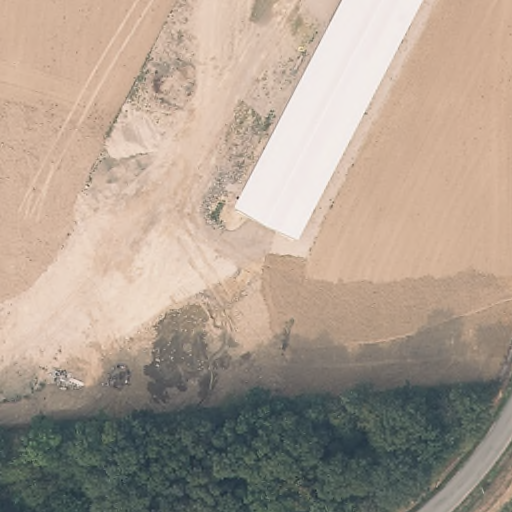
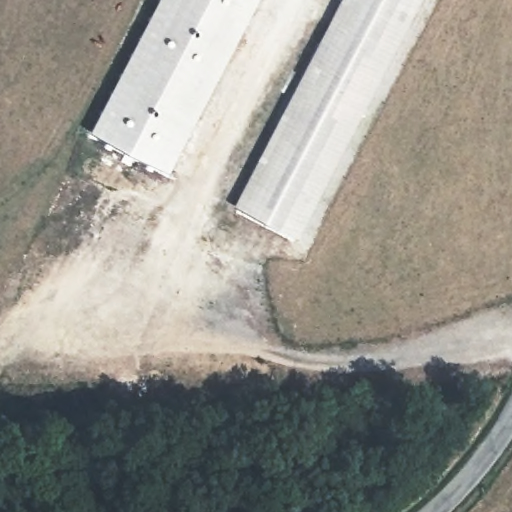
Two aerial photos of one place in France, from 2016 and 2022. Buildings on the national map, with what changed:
new [(170,170),(91,129),(159,0),(259,0),(170,170)]
unchanged [(343,0),(424,0),(300,239),(237,204),(343,0)]

